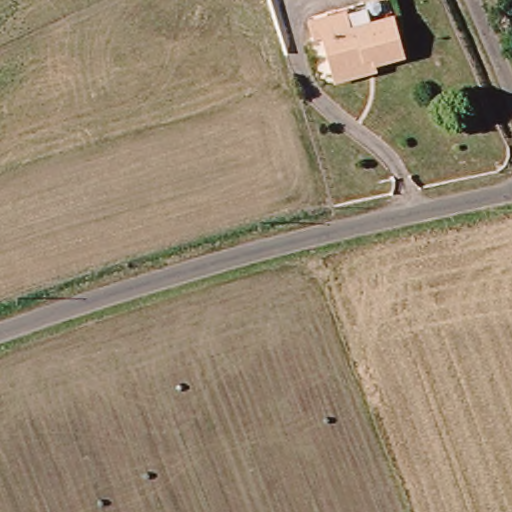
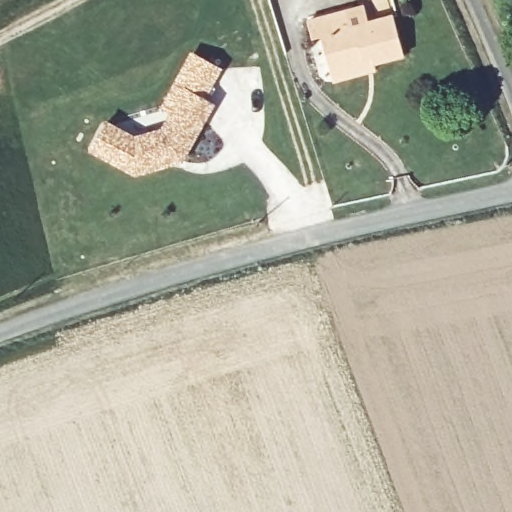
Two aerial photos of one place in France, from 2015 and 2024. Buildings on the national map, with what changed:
unchanged [(316,34),(306,37),(302,22),(340,11),(343,22),(390,12),(400,52),(370,59),(368,51),(354,54),(355,60),(358,70),(328,78),(326,67),(316,34)]
new [(107,122),(136,137),(165,129),(187,87),(215,102),(184,159),(179,156),(177,161),(137,174),(92,150),(107,122)]

